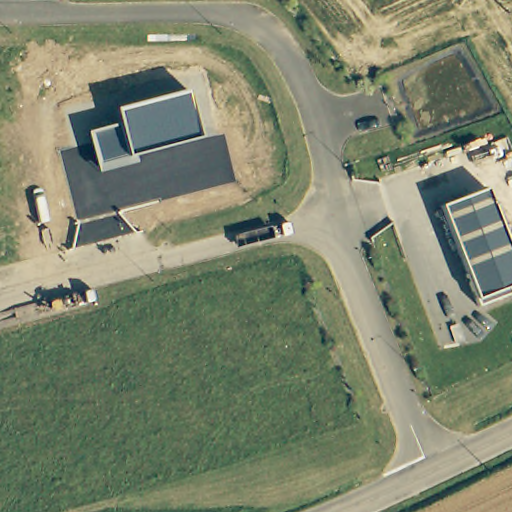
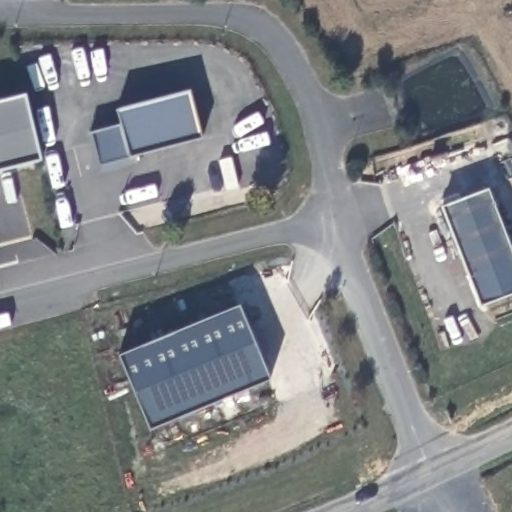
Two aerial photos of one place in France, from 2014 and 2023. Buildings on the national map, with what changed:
unchanged [(120,124),(116,109),(189,90),(200,137),(135,155),(136,163),(100,174),(88,132),(120,124)]
new [(0,171),(0,102),(25,96),(41,160),(0,171)]
unchanged [(466,281),(468,280),(440,205),(488,187),(512,250),(512,287),(509,289),(510,293),(476,305),(466,281)]
new [(118,356),(239,306),(270,381),(150,430),(118,356)]

